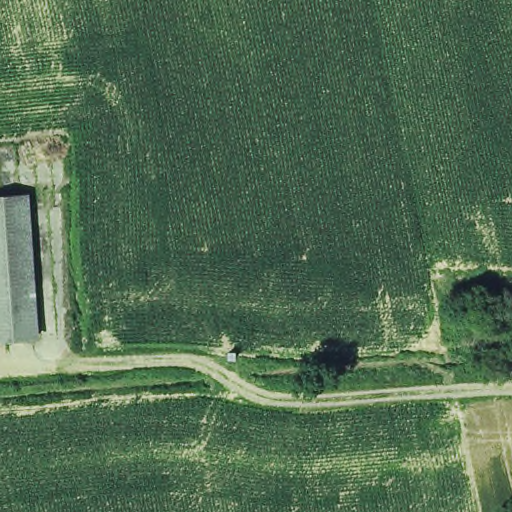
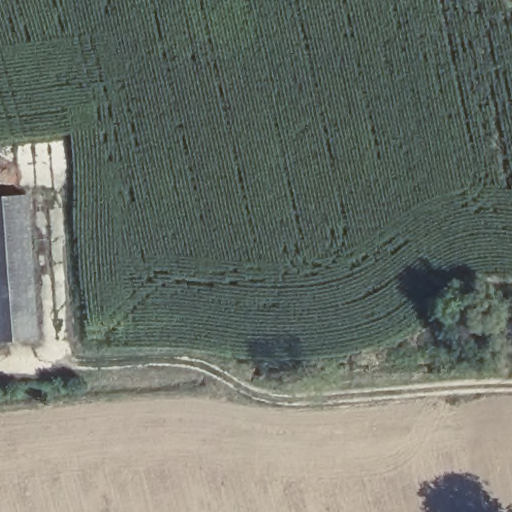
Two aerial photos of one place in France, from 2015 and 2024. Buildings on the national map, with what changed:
unchanged [(36,341),(0,345),(0,201),(25,198),(36,341)]

